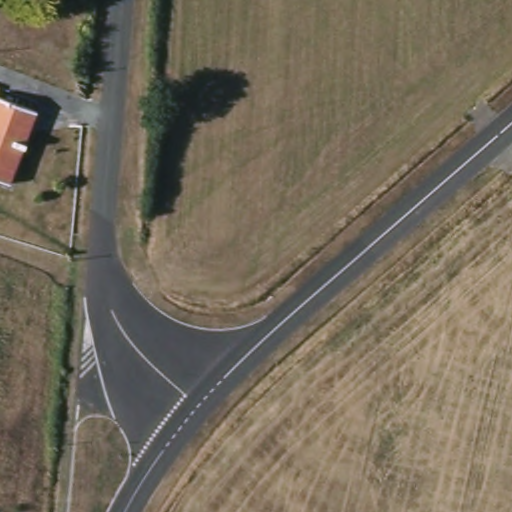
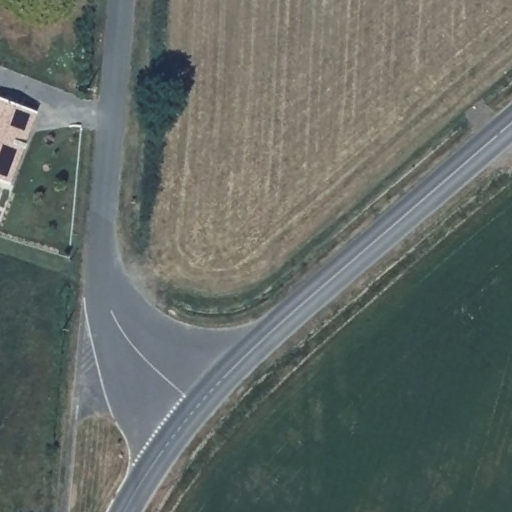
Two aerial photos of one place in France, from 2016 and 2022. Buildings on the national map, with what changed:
unchanged [(34,114),(12,182),(0,178),(0,101),(34,114)]

